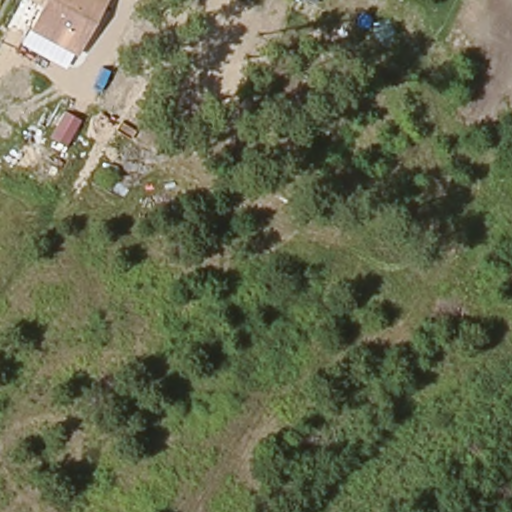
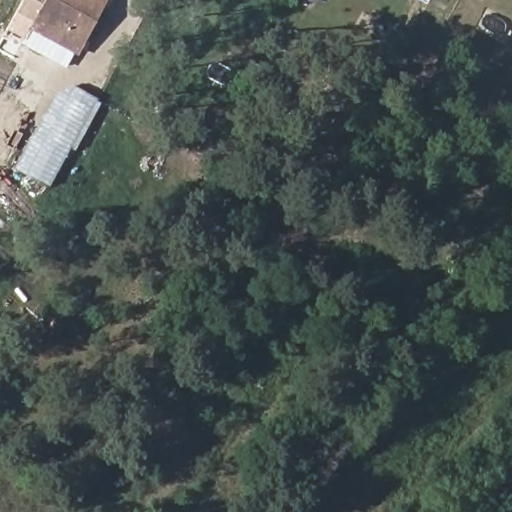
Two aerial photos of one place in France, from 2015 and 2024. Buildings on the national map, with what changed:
unchanged [(32,24),(45,0),(109,0),(81,53),(32,24)]
new [(58,90),(64,94),(69,84),(98,100),(50,188),(15,169),(58,90)]

